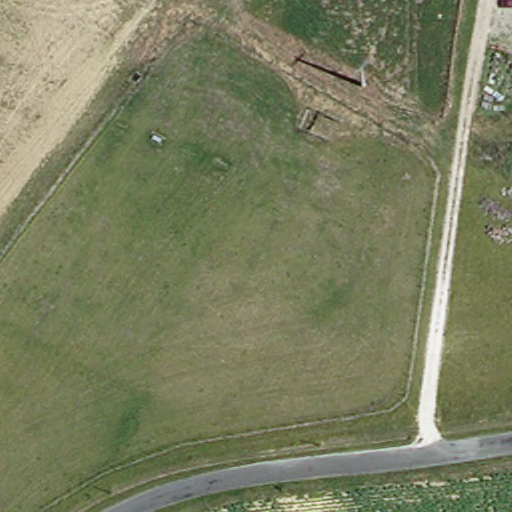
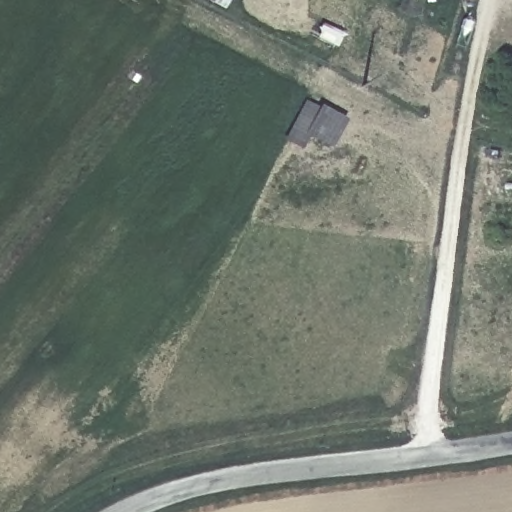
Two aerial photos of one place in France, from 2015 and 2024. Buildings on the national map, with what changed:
new [(300,152),(284,144),(304,102),(346,122),(330,154),(305,142),(300,152)]

